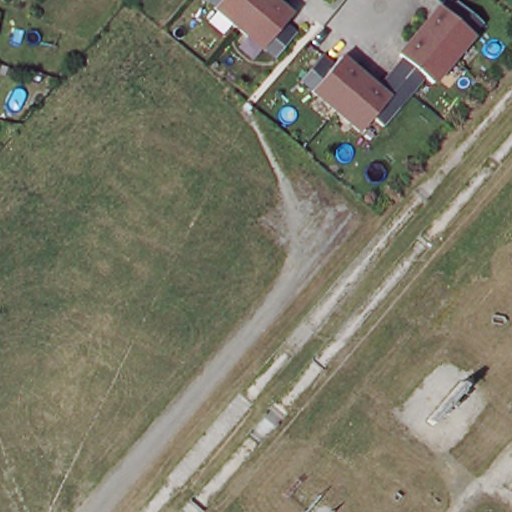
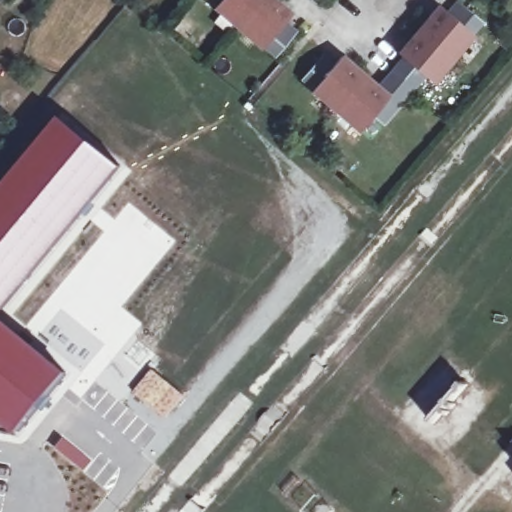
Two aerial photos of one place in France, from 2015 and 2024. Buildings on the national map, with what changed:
unchanged [(216,7),(217,6),(210,0),(263,0),(241,27),(216,7)]
unchanged [(294,14),(286,22),(298,32),(276,57),(265,47),(264,48),(241,27),(263,0),(277,0),(294,14)]
unchanged [(436,1),(444,7),(450,0),(459,0),(479,17),(469,28),(470,29),(450,53),(416,25),(436,1)]
unchanged [(450,53),(430,78),(422,71),(409,86),(386,67),(399,52),(396,49),(416,25),(450,53)]
unchanged [(309,85),(309,84),(298,74),(319,49),(331,59),(338,51),(362,72),(333,106),(309,85)]
unchanged [(369,111),(357,126),(333,106),(362,72),(374,82),(378,78),(386,67),(409,86),(381,120),(369,111)]
new [(62,119),(123,169),(0,316),(68,373),(16,434),(0,420),(0,193),(62,119)]

